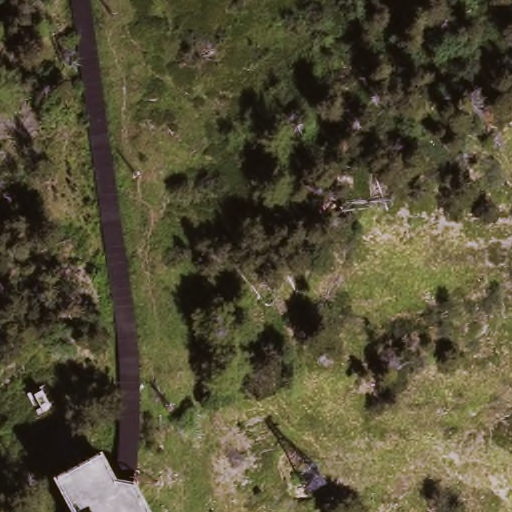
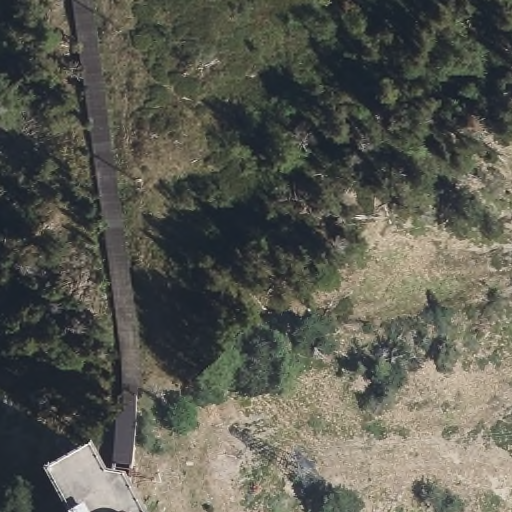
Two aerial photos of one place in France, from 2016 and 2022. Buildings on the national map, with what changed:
unchanged [(104,464),(124,503),(134,494),(144,512),(65,512),(55,490),(104,464)]

